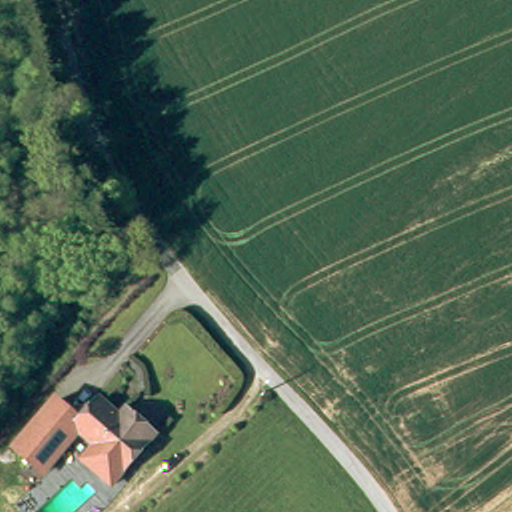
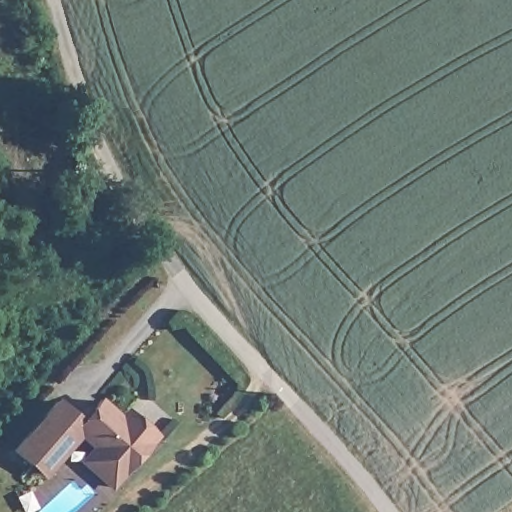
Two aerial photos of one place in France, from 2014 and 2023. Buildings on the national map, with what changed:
unchanged [(55,397),(80,417),(100,396),(120,415),(127,407),(160,435),(114,489),(79,461),(92,445),(81,437),(45,478),(11,450),(55,397)]

